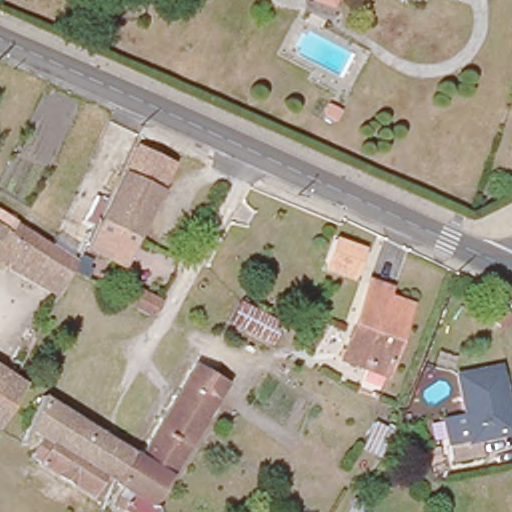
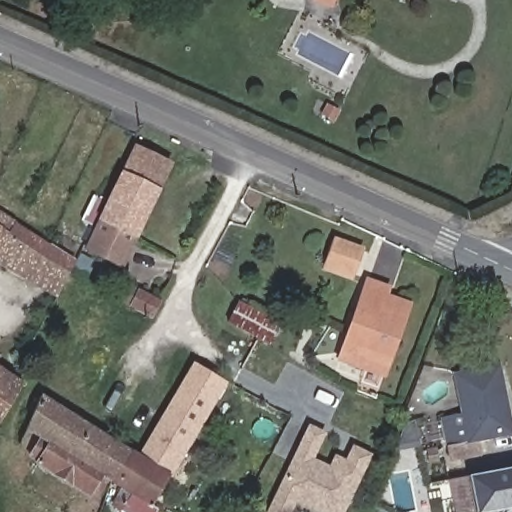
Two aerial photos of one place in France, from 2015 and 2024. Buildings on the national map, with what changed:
unchanged [(311,0),(332,0),(330,6),(311,0)]
unchanged [(135,146),(172,164),(160,190),(122,173),(135,146)]
unchanged [(160,190),(121,268),(86,251),(122,173),(160,190)]
unchanged [(0,217),(72,264),(67,275),(62,285),(55,300),(55,301),(0,268),(0,217)]
unchanged [(332,241),(333,236),(362,247),(353,271),(324,261),(332,241)]
unchanged [(125,283),(160,300),(151,317),(135,310),(125,304),(117,300),(125,283)]
unchanged [(382,381),(339,366),(367,287),(387,295),(384,302),(407,311),(382,381)]
unchanged [(281,325),(270,345),(229,324),(239,303),(281,325)]
unchanged [(493,362),(507,430),(472,437),(475,451),(447,457),(445,442),(466,437),(451,371),(493,362)]
unchanged [(148,436),(174,395),(193,364),(214,376),(227,385),(218,398),(179,462),(170,477),(157,468),(137,455),(148,436)]
unchanged [(22,390),(14,405),(11,410),(0,429),(0,376),(15,385),(22,390)]
unchanged [(40,440),(26,431),(37,406),(42,397),(44,398),(71,415),(109,438),(127,450),(126,456),(115,486),(110,483),(100,502),(81,491),(45,468),(29,458),(40,440)]
unchanged [(357,448),(370,422),(393,433),(381,460),(357,448)]
new [(422,447),(401,452),(395,427),(416,423),(422,447)]
new [(293,512),(266,512),(307,427),(326,436),(313,460),(329,467),(333,457),(344,462),(351,448),(371,457),(345,512),(313,512),(297,504),(293,512)]
unchanged [(122,511),(112,505),(121,490),(115,486),(126,456),(127,450),(132,452),(135,455),(137,455),(157,468),(170,477),(153,505),(151,507),(157,510),(156,512),(124,512),(122,511)]
new [(502,512),(476,512),(469,476),(512,468),(512,510),(502,512)]
demolished [(343,503),(361,512),(339,512),(343,503)]

